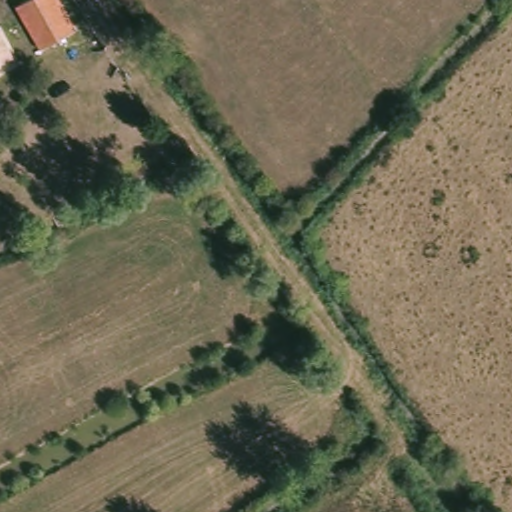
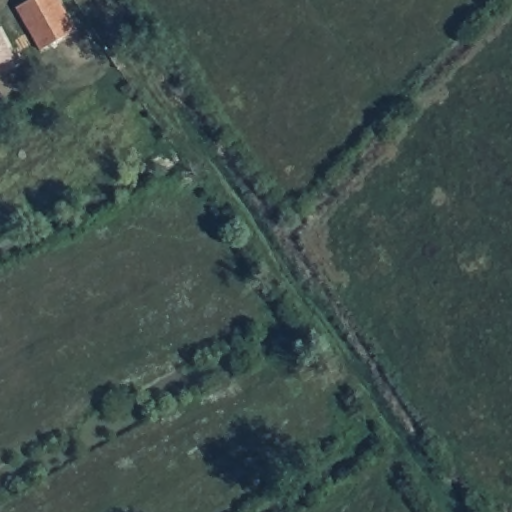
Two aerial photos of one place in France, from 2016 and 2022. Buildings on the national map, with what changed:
unchanged [(36,0),(50,0),(68,30),(41,48),(18,12),(36,0)]
unchanged [(6,62),(0,65),(0,51),(6,62)]

